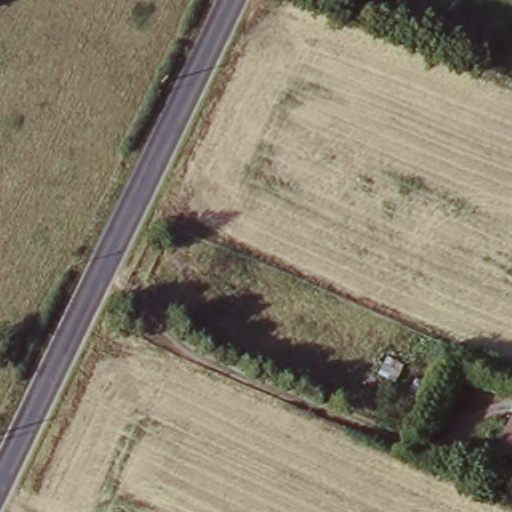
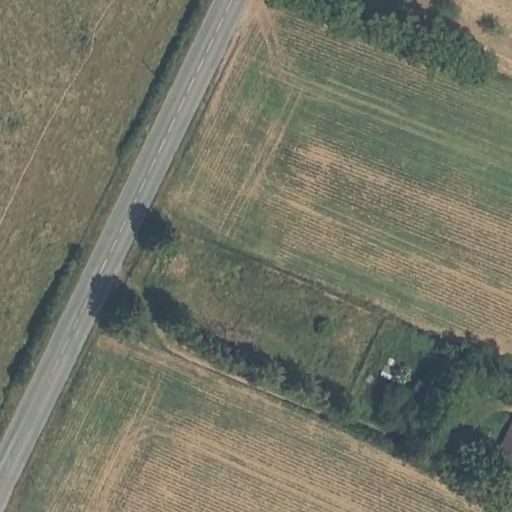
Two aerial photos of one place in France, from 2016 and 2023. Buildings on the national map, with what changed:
unchanged [(512,423),(512,462),(497,454),(509,422),(512,423)]

